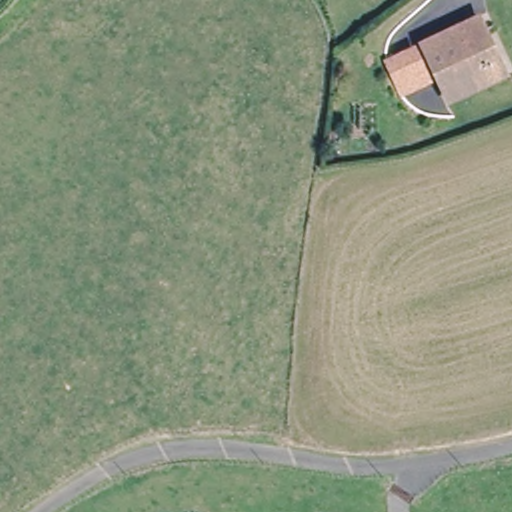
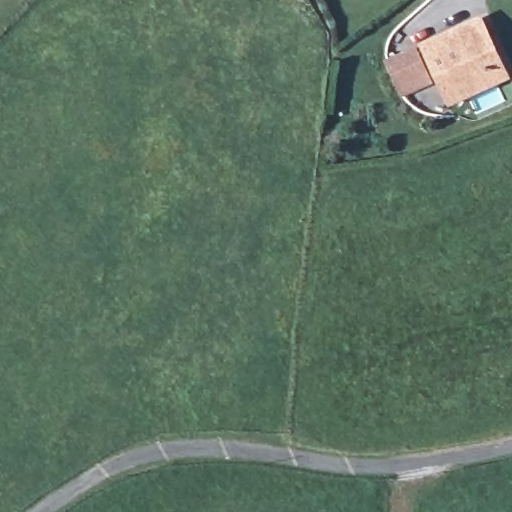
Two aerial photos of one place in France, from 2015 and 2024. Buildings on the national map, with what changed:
unchanged [(446,104),(441,91),(421,47),(477,21),(498,65),(503,77),(446,104)]
unchanged [(384,64),(411,51),(422,75),(426,84),(398,96),(395,87),(384,64)]

